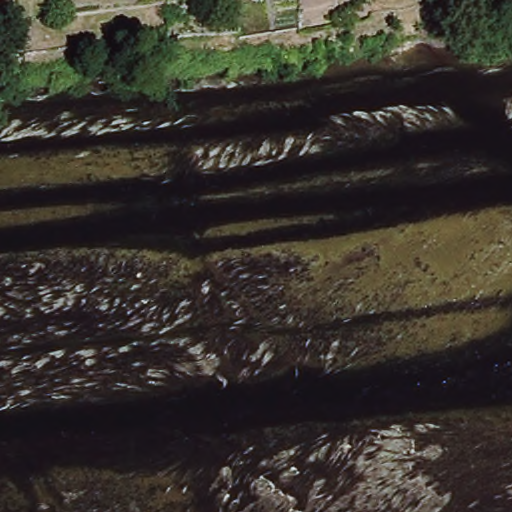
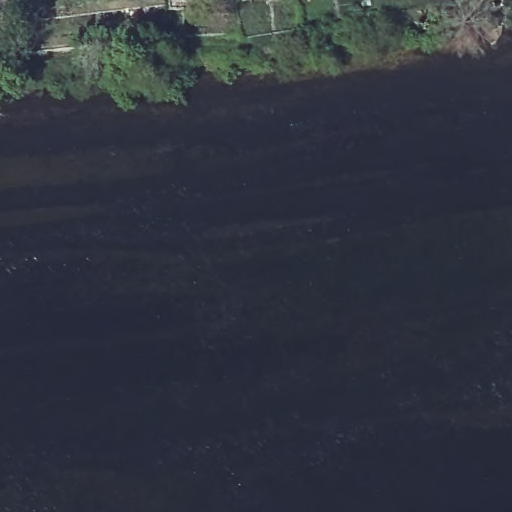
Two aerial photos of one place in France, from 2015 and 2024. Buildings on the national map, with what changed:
unchanged [(4,11),(0,11),(0,0),(4,0),(4,11)]
unchanged [(5,26),(5,41),(0,41),(0,26),(5,26)]

